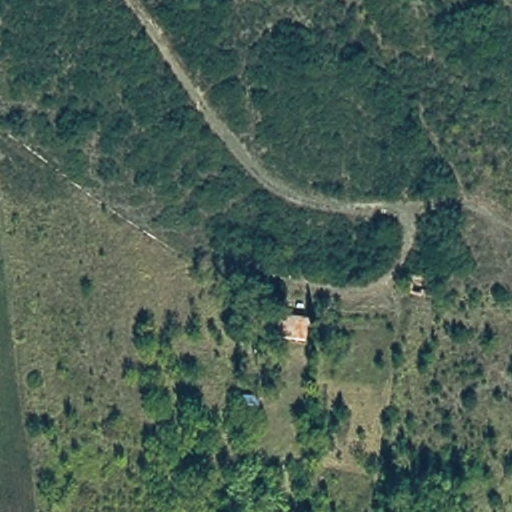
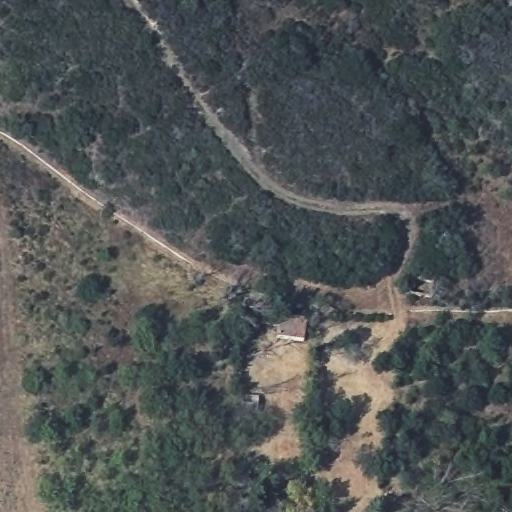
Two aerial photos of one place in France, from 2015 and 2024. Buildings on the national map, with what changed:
unchanged [(408,274),(436,277),(434,299),(405,296),(408,274)]
unchanged [(277,312),(307,316),(305,344),(275,337),(277,312)]

